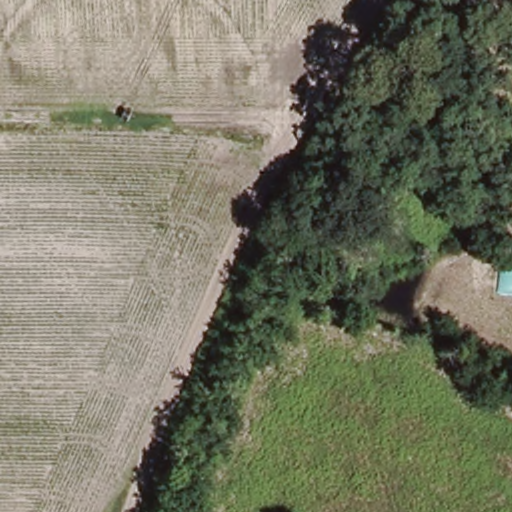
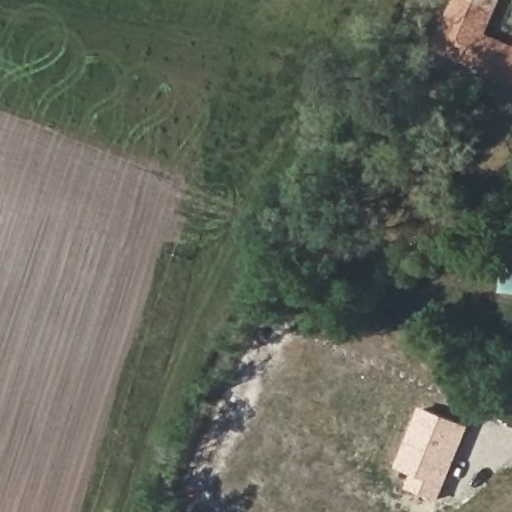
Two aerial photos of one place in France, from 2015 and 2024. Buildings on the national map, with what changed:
new [(437,49),(457,0),(461,0),(497,17),(486,33),(512,45),(512,84),(437,49)]
unchanged [(497,17),(461,0),(505,0),(497,17)]
new [(397,468),(422,407),(471,427),(438,501),(409,490),(414,473),(397,468)]

